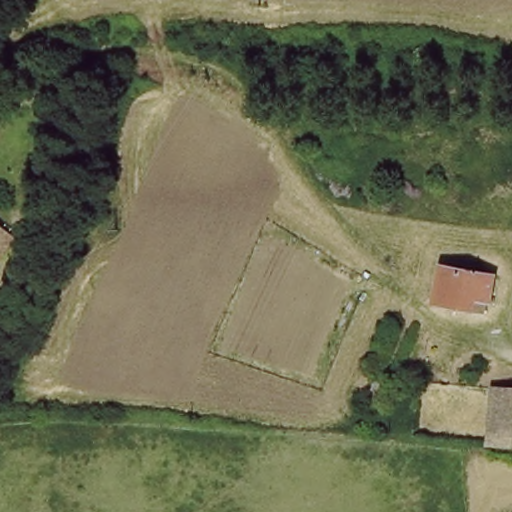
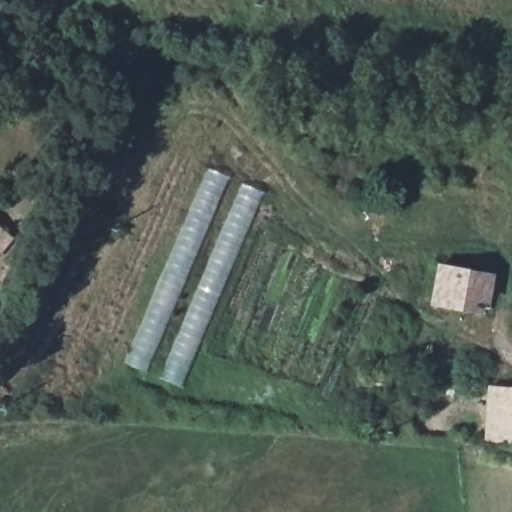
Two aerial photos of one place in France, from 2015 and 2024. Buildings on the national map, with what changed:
new [(231,178),(147,374),(122,363),(208,168),(231,178)]
new [(265,192),(182,386),(160,378),(242,184),(265,192)]
unchanged [(1,258),(0,258),(0,230),(16,242),(1,258)]
unchanged [(488,300),(483,300),(482,311),(434,303),(439,266),(489,276),(488,300)]
unchanged [(495,446),(485,446),(486,391),(496,391),(512,392),(512,446),(495,446)]

